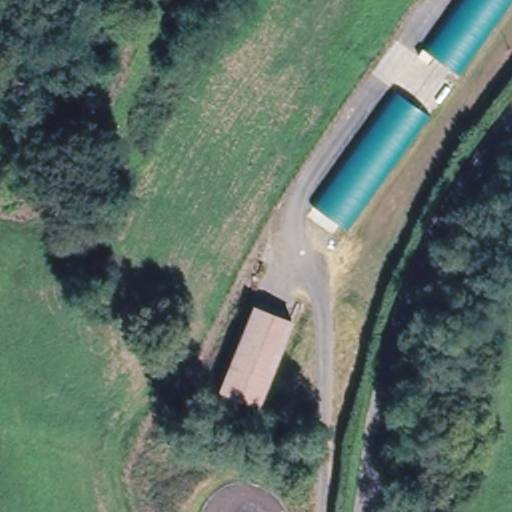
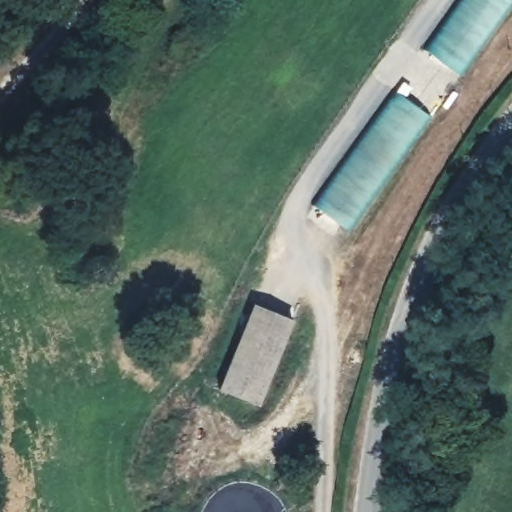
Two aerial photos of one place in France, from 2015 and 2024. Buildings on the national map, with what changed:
unchanged [(425,48),(463,0),(512,0),(512,14),(459,78),(425,48)]
unchanged [(440,121),(350,231),(314,202),(403,92),(440,121)]
unchanged [(296,322),(256,403),(219,385),(258,304),(296,322)]

